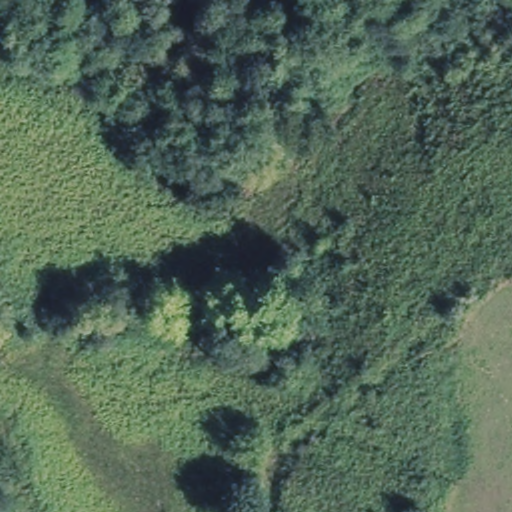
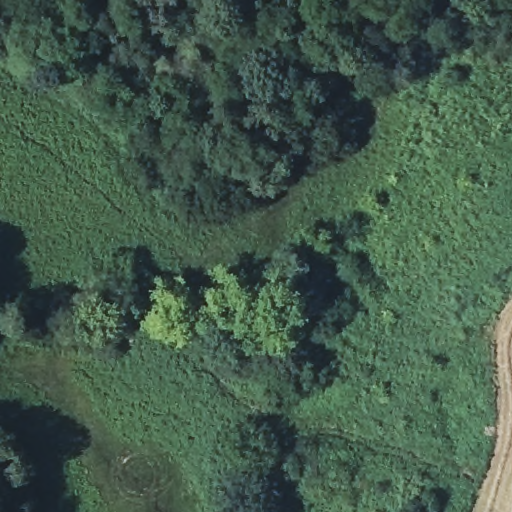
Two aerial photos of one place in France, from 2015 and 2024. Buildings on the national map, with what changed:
[]

